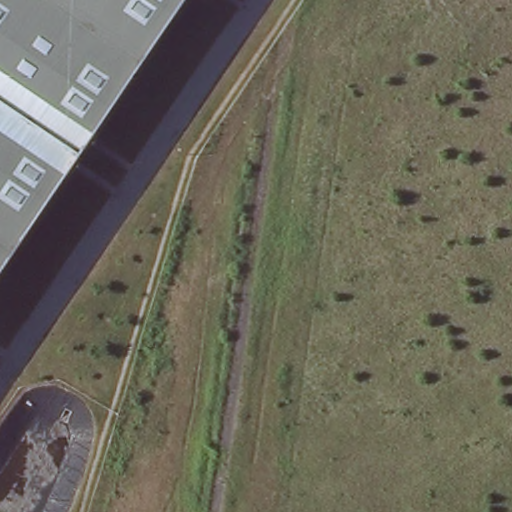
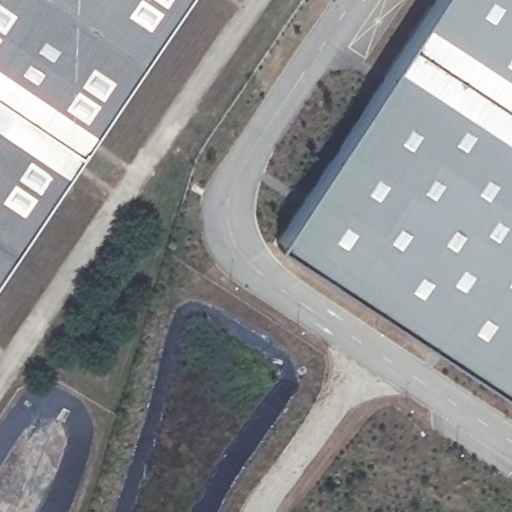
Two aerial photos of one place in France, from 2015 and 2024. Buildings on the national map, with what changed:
unchanged [(0,268),(0,0),(182,0),(0,268)]
new [(436,0),(512,0),(512,398),(277,244),(436,0)]

